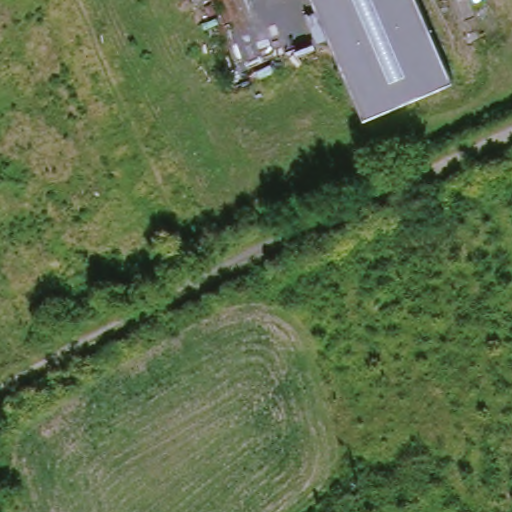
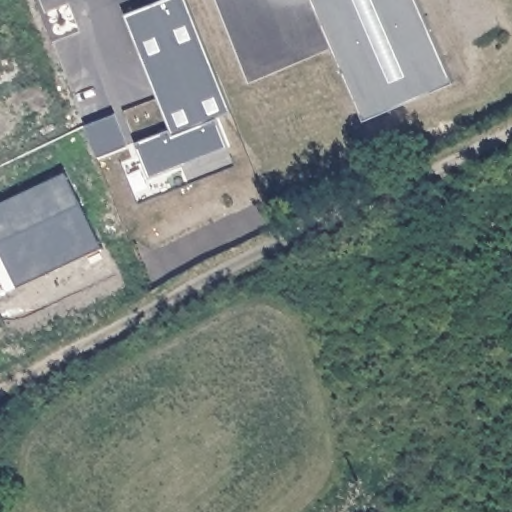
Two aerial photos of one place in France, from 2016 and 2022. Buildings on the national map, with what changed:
new [(187,0),(230,112),(215,119),(227,146),(150,177),(135,142),(170,130),(125,15),(161,0),(187,0)]
unchanged [(362,119),(312,0),(418,0),(452,81),(362,119)]
new [(100,248),(15,287),(0,254),(0,202),(65,172),(100,248)]

